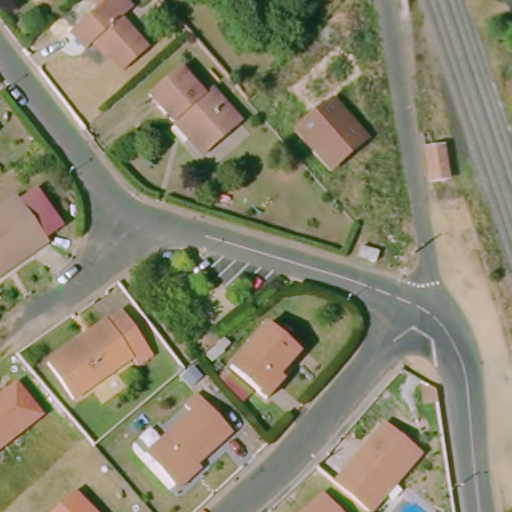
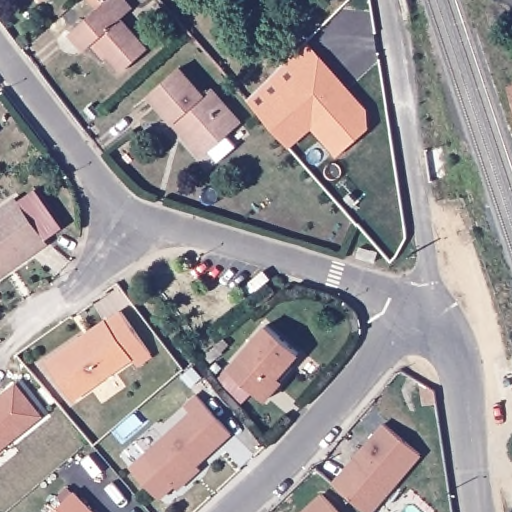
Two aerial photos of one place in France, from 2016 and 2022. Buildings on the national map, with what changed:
unchanged [(115,15),(143,46),(119,68),(92,38),(81,48),(65,31),(93,6),(87,0),(121,0),(126,5),(115,15)]
new [(371,131),(338,160),(312,133),(288,151),(246,102),(306,46),(370,111),(371,131)]
unchanged [(169,119),(145,92),(175,65),(200,93),(207,87),(238,121),(207,150),(201,155),(169,119)]
unchanged [(505,86),(512,83),(512,108),(505,86)]
demolished [(325,176),(288,129),(331,93),(366,136),(325,176)]
unchanged [(444,158),(448,189),(431,191),(426,160),(444,158)]
unchanged [(10,196),(42,239),(21,253),(0,268),(0,203),(10,196)]
unchanged [(376,264),(368,270),(355,256),(363,249),(376,264)]
unchanged [(102,319),(114,310),(143,353),(131,361),(127,355),(67,394),(40,356),(54,347),(85,325),(99,315),(102,319)]
unchanged [(259,397),(251,390),(223,365),(260,324),(292,352),(271,376),(275,380),(259,397)]
unchanged [(0,452),(0,395),(17,383),(44,417),(0,452)]
unchanged [(137,451),(197,398),(226,432),(190,463),(184,461),(180,465),(180,471),(167,483),(137,451)]
unchanged [(386,427),(424,459),(378,512),(364,512),(334,486),(386,427)]
unchanged [(94,512),(55,512),(75,492),(94,512)]
unchanged [(339,512),(301,512),(322,493),(339,512)]

